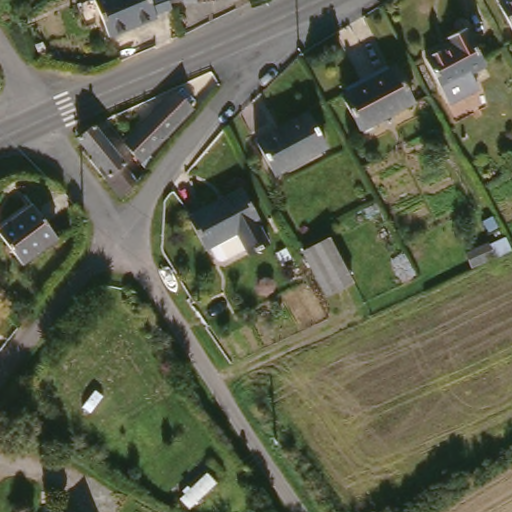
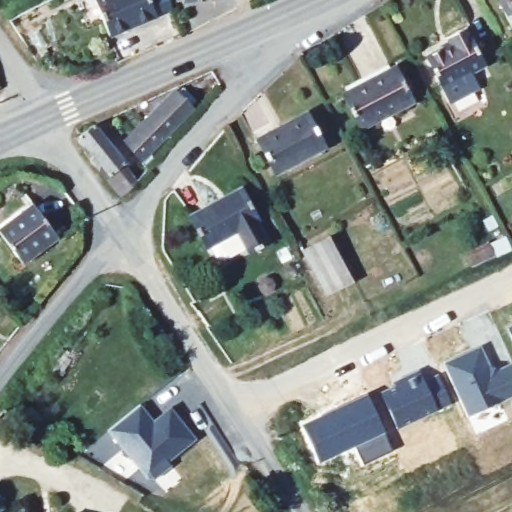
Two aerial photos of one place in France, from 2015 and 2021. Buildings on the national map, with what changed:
unchanged [(180,3),(164,11),(165,13),(117,34),(102,0),(179,0),(180,3)]
unchanged [(501,0),(512,0),(512,18),(501,0)]
unchanged [(441,50),(453,43),(448,36),(469,24),(490,63),(475,71),(482,85),(455,100),(429,56),(441,50)]
unchanged [(397,67),(417,104),(366,135),(346,99),(397,67)]
unchanged [(180,93),(188,100),(197,110),(148,153),(130,137),(180,93)]
unchanged [(311,114),(326,140),(331,148),(280,177),(259,143),(311,114)]
unchanged [(94,124),(112,144),(132,167),(124,173),(120,169),(117,171),(121,175),(115,180),(102,165),(104,164),(78,134),(94,124)]
unchanged [(220,257),(214,244),(209,247),(191,214),(243,187),(263,218),(260,219),(271,240),(251,251),(248,247),(226,259),(220,257)]
unchanged [(38,207),(60,240),(25,264),(3,231),(38,207)]
unchanged [(358,281),(332,296),(308,254),(335,239),(358,281)]
new [(511,329),(512,329),(512,332),(511,329)]
new [(483,347),(496,373),(512,366),(512,399),(472,417),(447,364),(483,347)]
new [(407,383),(405,379),(423,371),(428,382),(442,376),(455,404),(402,430),(385,394),(407,383)]
new [(354,405),(357,411),(375,403),(398,452),(368,466),(359,447),(323,463),(306,427),(354,405)]
new [(150,422),(155,418),(166,408),(193,439),(165,462),(169,466),(152,480),(145,480),(105,432),(136,406),(150,422)]

